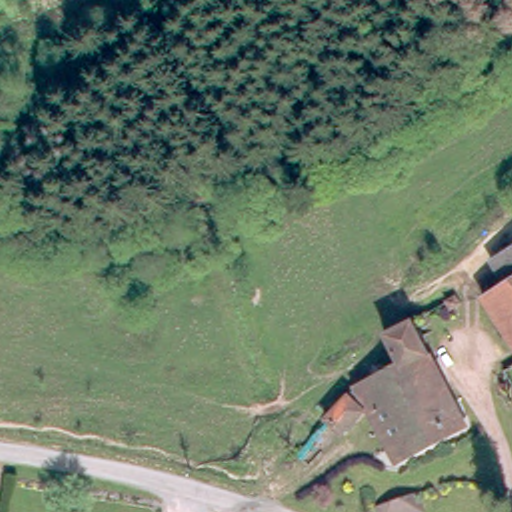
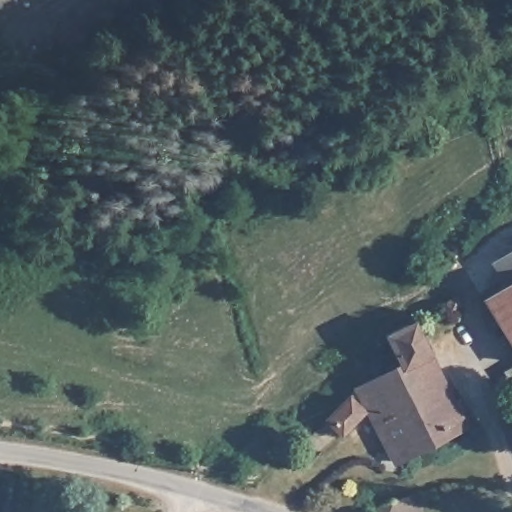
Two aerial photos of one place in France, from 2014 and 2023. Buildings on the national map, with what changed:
unchanged [(507,258),(512,255),(512,268),(507,258)]
unchanged [(488,298),(512,284),(512,339),(488,298)]
unchanged [(383,430),(374,409),(336,431),(325,414),(349,394),(375,378),(404,366),(389,332),(416,320),(467,428),(411,454),(398,460),(383,430)]

